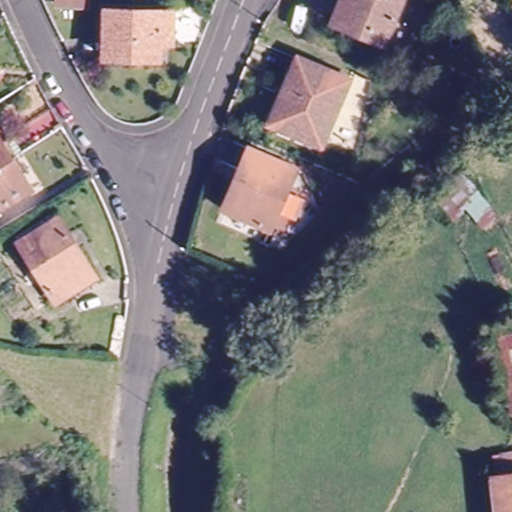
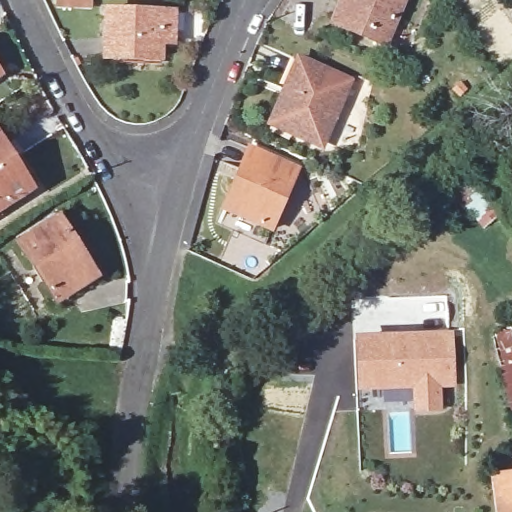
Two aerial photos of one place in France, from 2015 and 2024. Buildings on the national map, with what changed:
unchanged [(89,5),(55,4),(55,0),(89,0),(89,5)]
unchanged [(336,0),(401,0),(380,46),(334,25),(327,22),(336,0)]
unchanged [(155,40),(155,58),(101,57),(101,12),(169,12),(169,32),(169,40),(155,40)]
unchanged [(280,94),(294,64),(343,87),(314,150),(281,134),(265,127),(280,94)]
unchanged [(23,167),(34,184),(0,205),(0,131),(23,167)]
unchanged [(236,172),(246,150),(294,171),(266,234),(225,215),(218,212),(236,172)]
unchanged [(462,169),(497,215),(482,226),(468,207),(454,219),(436,191),(462,169)]
unchanged [(55,302),(19,244),(57,220),(69,238),(77,251),(93,277),(55,302)]
new [(455,387),(442,388),(443,412),(415,413),(412,389),(357,392),(355,335),(453,331),(455,387)]
unchanged [(491,342),(512,334),(512,413),(508,415),(491,342)]
unchanged [(497,480),(495,458),(512,456),(512,512),(496,512),(492,480),(497,480)]

